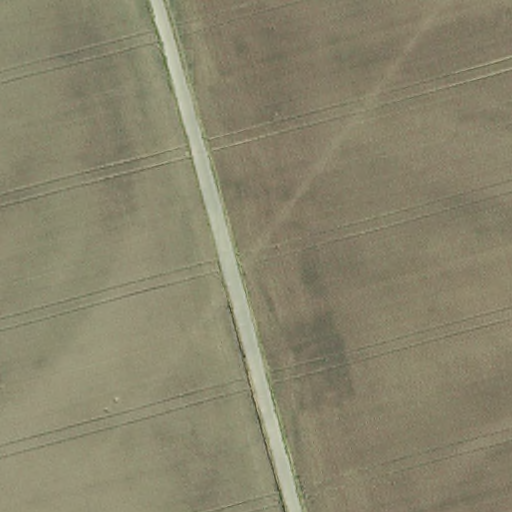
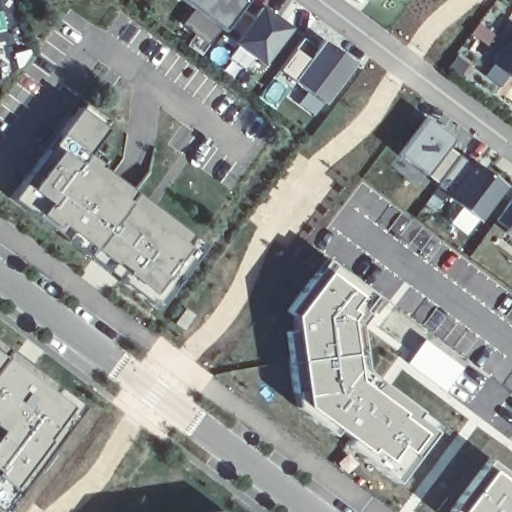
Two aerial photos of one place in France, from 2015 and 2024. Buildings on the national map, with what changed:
new [(224,31),(183,0),(247,0),(224,31)]
new [(253,18),(262,5),(291,28),(264,64),(234,42),(224,31),(241,7),(253,18)]
new [(302,37),(316,48),(322,40),(353,63),(323,103),(278,69),(302,37)]
new [(493,63),(512,37),(512,77),(493,63)]
new [(109,125),(89,153),(209,243),(161,308),(13,196),(85,105),(109,125)]
new [(426,117),(453,138),(426,175),(398,154),(426,117)]
new [(460,156),(473,166),(475,163),(505,185),(479,220),(450,197),(451,196),(437,186),(460,156)]
new [(512,223),(512,237),(505,232),(512,223)]
new [(292,328),(291,314),(285,310),(325,257),(378,297),(356,330),(361,334),(365,368),(438,422),(396,482),(294,406),(283,330),(292,328)]
new [(185,308),(193,314),(183,329),(174,323),(185,308)]
new [(10,512),(0,512),(0,340),(88,408),(10,512)]
new [(449,512),(494,450),(512,464),(512,512),(449,512)]
new [(231,512),(202,512),(226,508),(231,512)]

